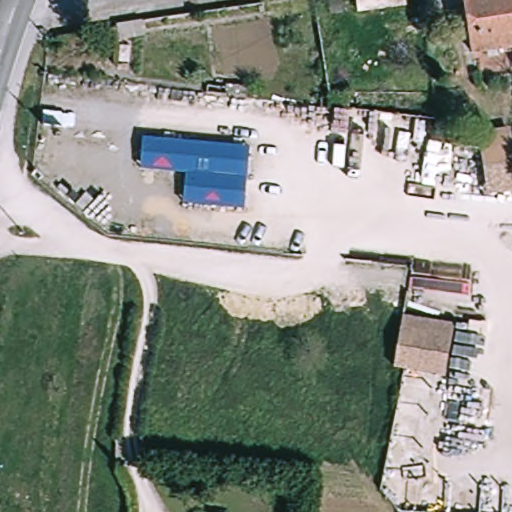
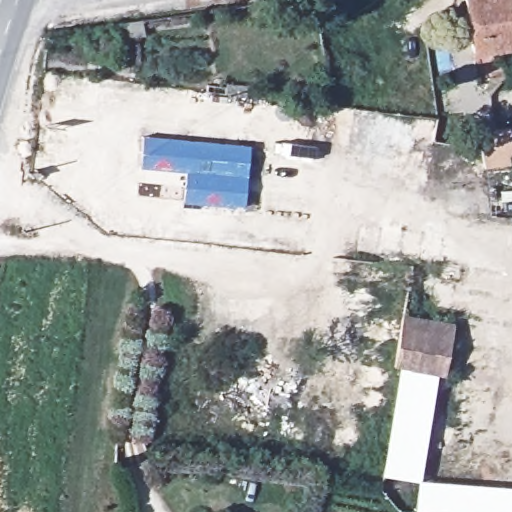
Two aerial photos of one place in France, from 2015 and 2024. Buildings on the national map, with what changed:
unchanged [(479,52),(469,0),(512,0),(512,46),(479,52)]
unchanged [(512,129),(512,160),(482,161),(481,130),(512,129)]
unchanged [(242,142),(239,204),(194,202),(196,174),(148,170),(149,137),(242,142)]
unchanged [(512,160),(512,193),(486,197),(482,161),(512,160)]
unchanged [(457,323),(448,380),(409,375),(410,360),(401,358),(408,315),(457,323)]
new [(418,481),(381,477),(401,358),(410,360),(409,375),(437,378),(418,481)]
new [(414,512),(418,481),(512,488),(512,512),(414,512)]

